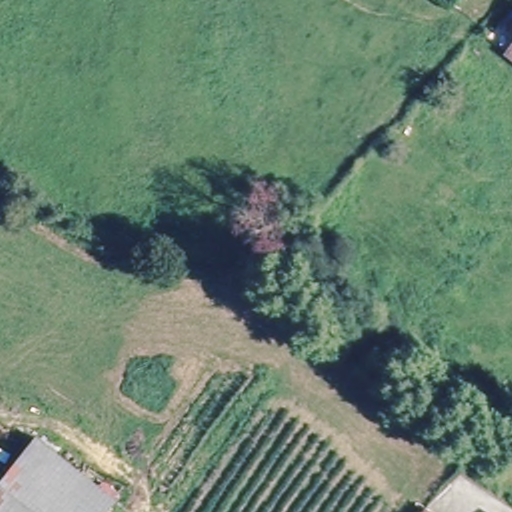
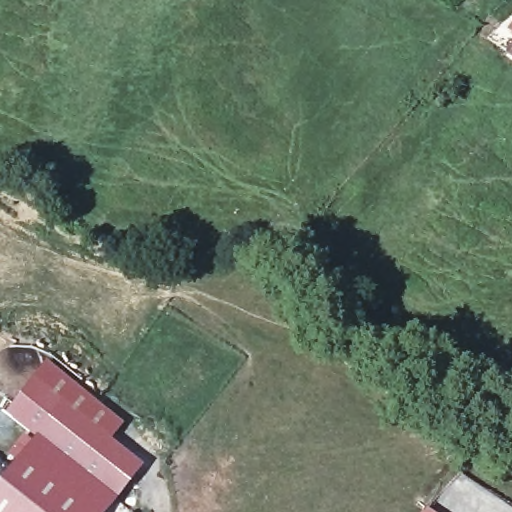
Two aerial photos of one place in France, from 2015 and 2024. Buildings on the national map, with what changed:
unchanged [(509,59),(512,55),(512,61),(509,59)]
new [(35,444),(3,417),(48,366),(123,426),(110,442),(142,469),(109,507),(35,444)]
unchanged [(0,486),(35,444),(109,507),(105,512),(0,512),(0,486)]

